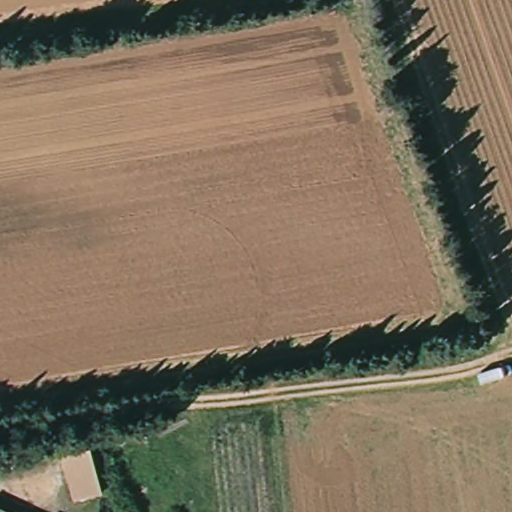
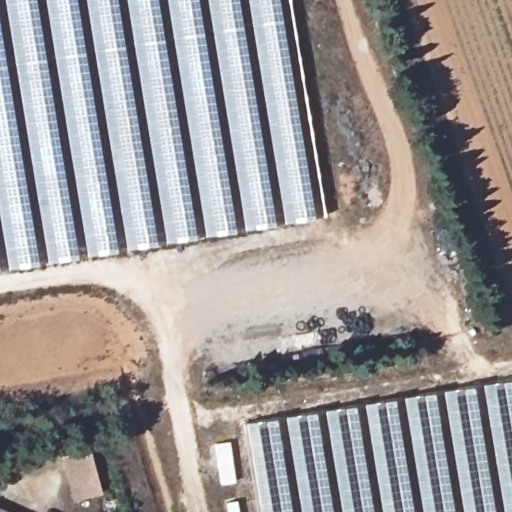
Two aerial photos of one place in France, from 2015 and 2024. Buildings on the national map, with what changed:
new [(0,0),(288,0),(323,214),(0,268),(0,0)]
new [(512,376),(512,512),(256,512),(241,420),(512,376)]
unchanged [(90,451),(105,491),(73,501),(58,460),(90,451)]

